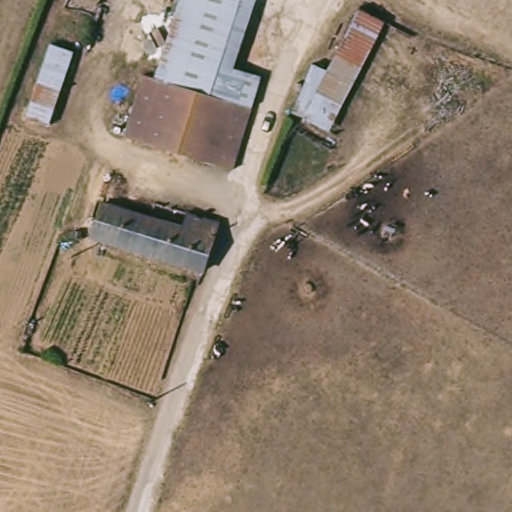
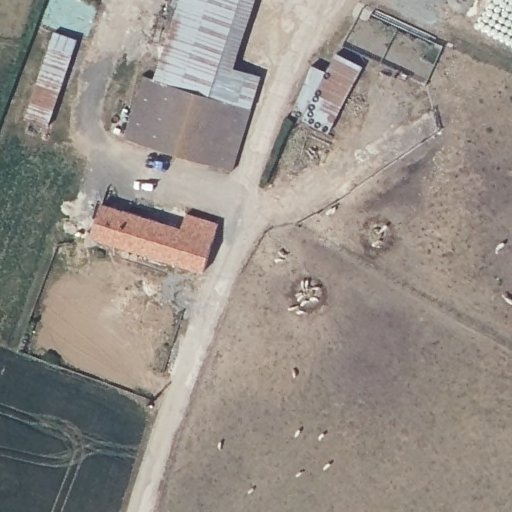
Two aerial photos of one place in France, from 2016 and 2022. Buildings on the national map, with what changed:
unchanged [(244,76),(235,101),(150,73),(175,0),(251,0),(227,70),(244,76)]
unchanged [(279,150),(291,122),(304,66),(321,71),(352,10),(384,26),(324,136),(313,133),(303,160),(279,150)]
unchanged [(76,50),(50,126),(25,116),(49,41),(76,50)]
unchanged [(248,106),(227,171),(120,135),(142,70),(150,73),(235,101),(248,106)]
unchanged [(98,203),(173,228),(179,215),(213,227),(198,272),(181,267),(88,234),(98,203)]

